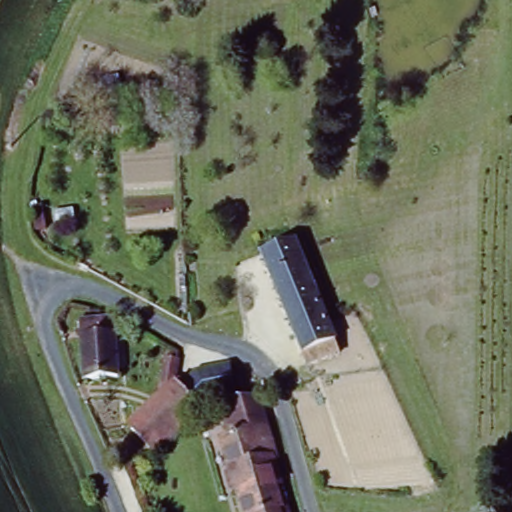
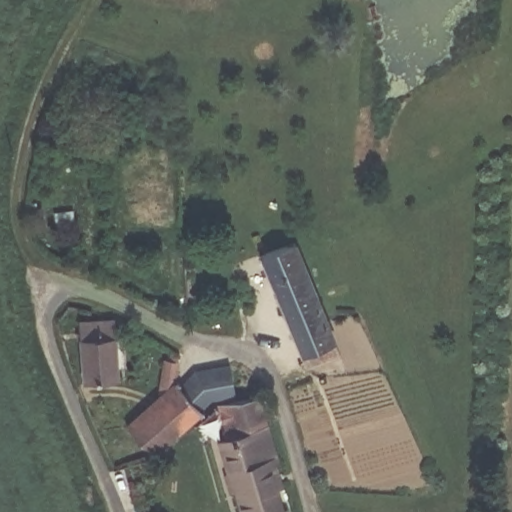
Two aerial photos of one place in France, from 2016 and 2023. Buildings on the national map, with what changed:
unchanged [(101,114),(120,113),(120,130),(101,130),(101,114)]
unchanged [(260,249),(287,234),(292,242),(297,240),(344,351),(311,366),(260,249)]
unchanged [(79,319),(110,317),(115,371),(83,373),(79,319)]
unchanged [(161,390),(159,355),(168,357),(171,345),(179,347),(179,374),(181,377),(198,396),(200,398),(203,402),(157,446),(132,417),(161,390)]
unchanged [(197,362),(237,361),(242,382),(219,387),(200,398),(198,396),(181,377),(197,362)]
unchanged [(229,431),(220,392),(259,384),(279,445),(276,446),(280,460),(275,461),(286,496),(281,498),(287,512),(248,512),(222,432),(229,431)]

